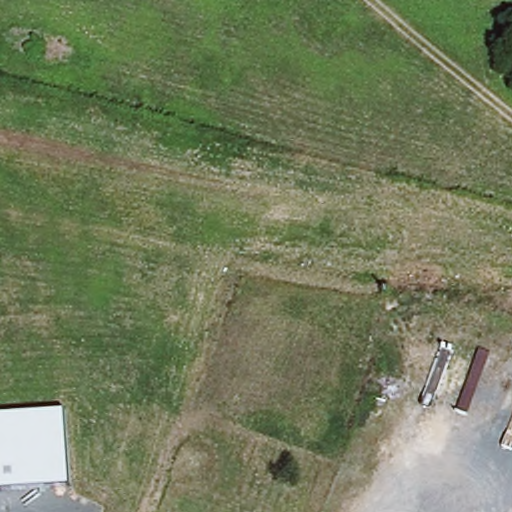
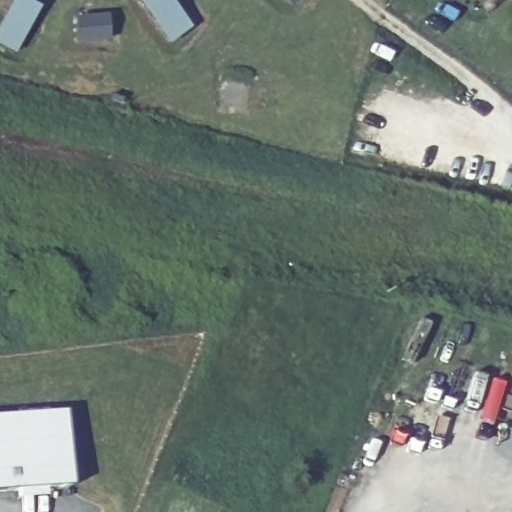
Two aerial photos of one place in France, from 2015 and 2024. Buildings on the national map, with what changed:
new [(11,0),(23,0),(35,6),(31,15),(13,51),(0,44),(0,22),(9,4),(11,0)]
new [(169,40),(145,8),(139,1),(141,0),(170,0),(189,25),(169,40)]
new [(107,37),(77,40),(76,22),(75,17),(92,16),(105,15),(107,37)]
unchanged [(64,409),(71,484),(0,489),(0,413),(64,409)]

